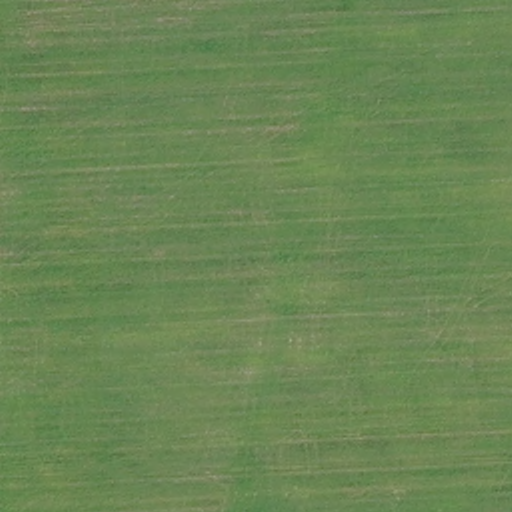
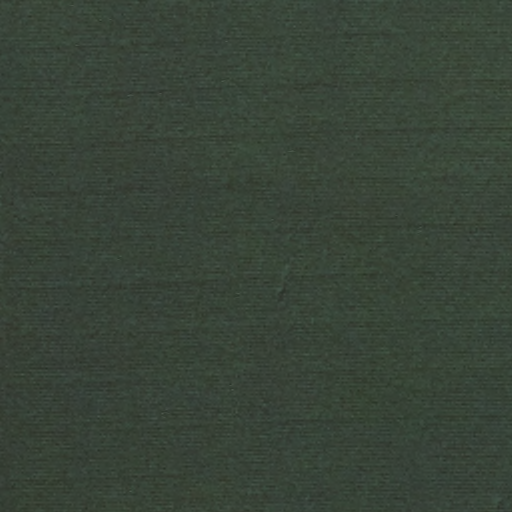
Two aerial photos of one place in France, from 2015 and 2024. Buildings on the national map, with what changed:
[]

